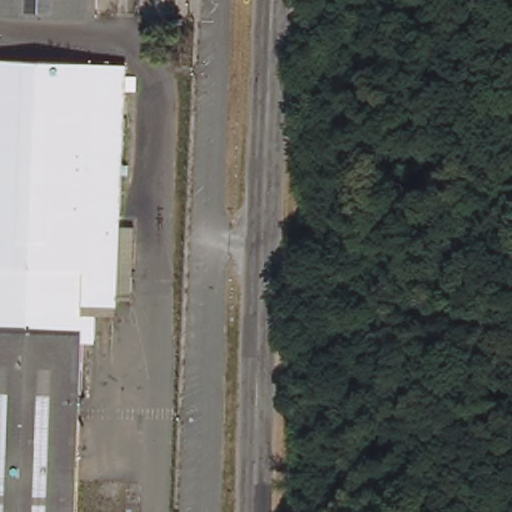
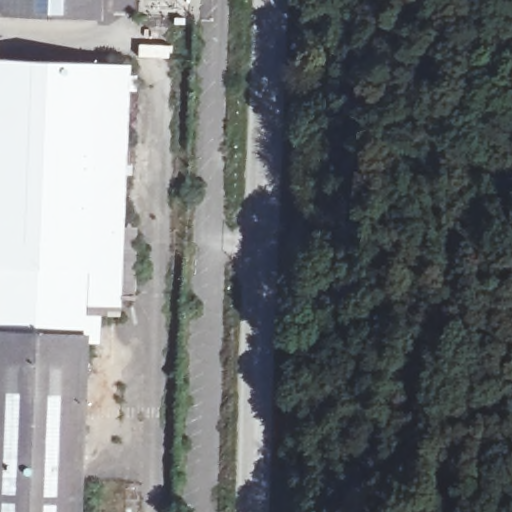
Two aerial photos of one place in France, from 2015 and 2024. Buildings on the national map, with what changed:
unchanged [(0,0),(91,0),(90,20),(0,17),(0,0)]
unchanged [(122,262),(85,262),(84,312),(98,312),(97,334),(82,334),(77,512),(0,512),(0,61),(130,65),(122,262)]

